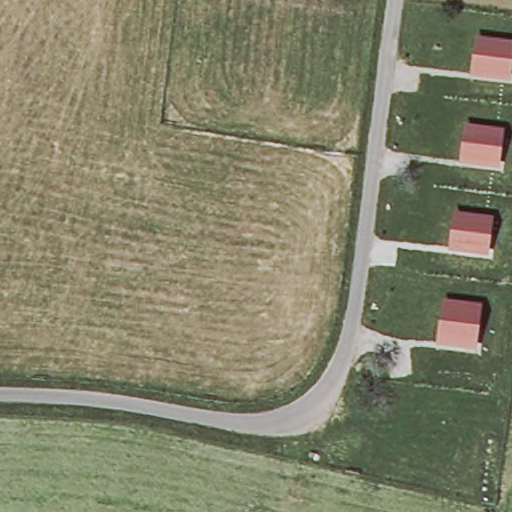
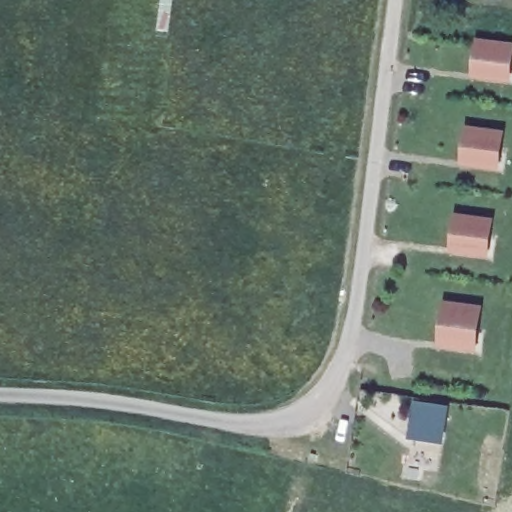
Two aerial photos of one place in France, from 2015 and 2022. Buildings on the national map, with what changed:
unchanged [(475,40),(512,45),(512,80),(512,83),(470,77),(475,40)]
unchanged [(505,132),(501,172),(460,166),(464,126),(505,132)]
unchanged [(495,219),(490,257),(449,252),(455,212),(495,219)]
unchanged [(482,307),(477,352),(437,347),(442,302),(482,307)]
new [(444,443),(409,438),(413,400),(448,405),(444,443)]

